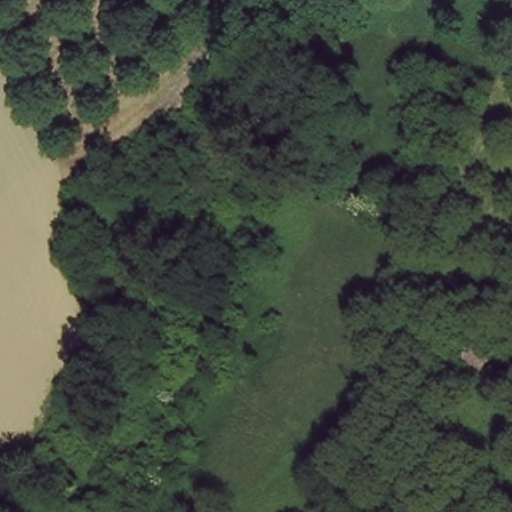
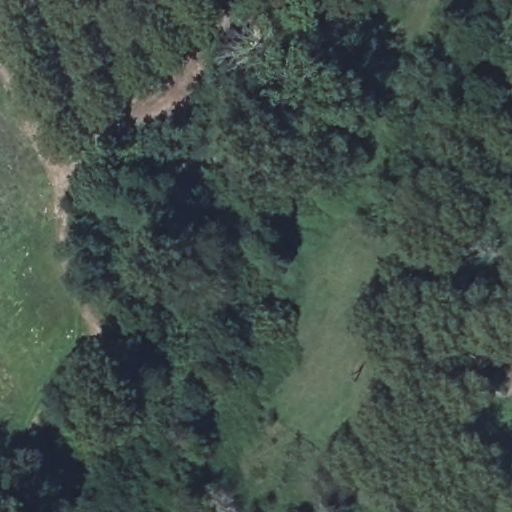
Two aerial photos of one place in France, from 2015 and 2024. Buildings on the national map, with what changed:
unchanged [(487,384),(460,368),(476,339),(503,356),(487,384)]

